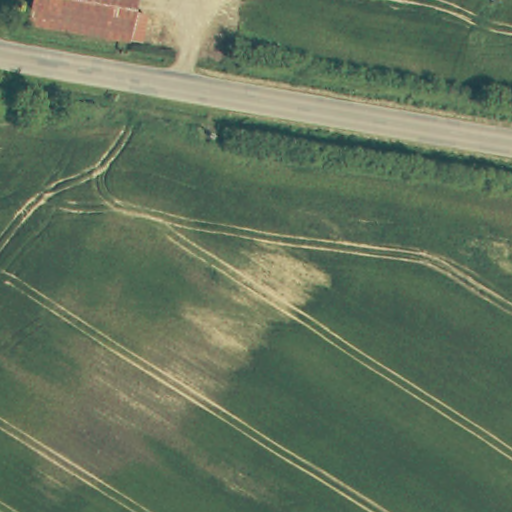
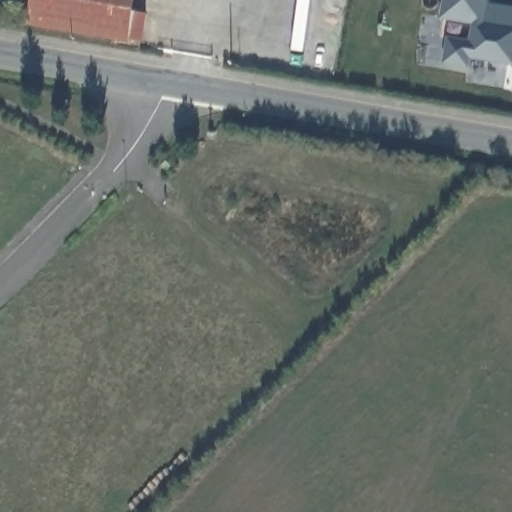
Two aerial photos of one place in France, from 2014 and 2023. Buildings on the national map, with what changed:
unchanged [(131,41),(30,25),(34,0),(138,0),(135,16),(148,18),(144,43),(131,41)]
new [(470,59),(468,69),(443,63),(447,37),(469,40),(472,25),(439,19),(442,0),(489,0),(489,3),(512,7),(512,66),(470,59)]

